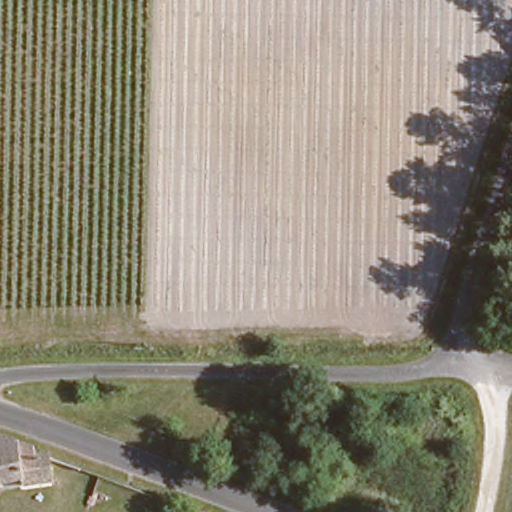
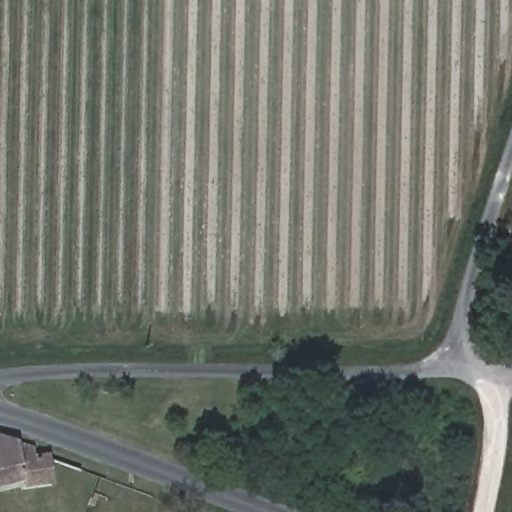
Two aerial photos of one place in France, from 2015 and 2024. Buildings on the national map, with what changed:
unchanged [(13,447),(31,446),(34,455),(43,454),(48,478),(18,483),(17,476),(0,481),(0,434),(12,439),(13,447)]

